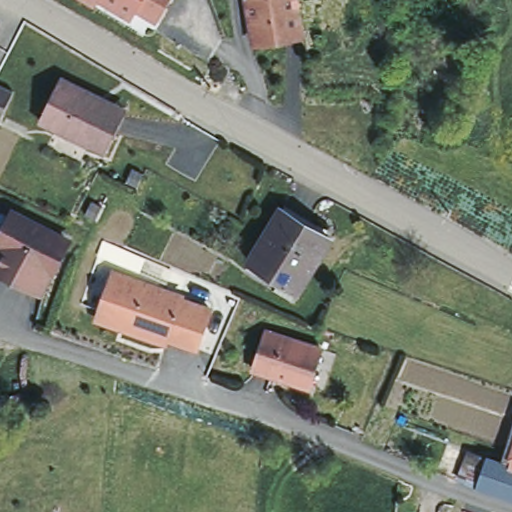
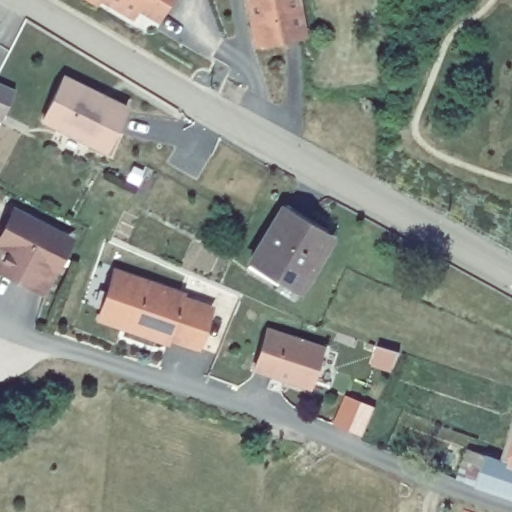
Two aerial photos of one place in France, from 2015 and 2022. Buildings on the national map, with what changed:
unchanged [(98,0),(97,2),(94,0),(98,0)]
unchanged [(138,7),(133,17),(106,0),(169,0),(158,19),(138,7)]
unchanged [(282,34),(283,39),(261,42),(257,21),(255,21),(252,0),(301,0),(305,30),(282,34)]
unchanged [(86,82),(116,97),(115,102),(96,140),(33,110),(53,67),(86,82)]
unchanged [(0,96),(0,80),(6,83),(0,96)]
unchanged [(277,197),(326,227),(315,244),(263,220),(277,197)]
unchanged [(14,201),(63,227),(36,279),(0,260),(0,228),(2,224),(14,201)]
unchanged [(270,277),(276,268),(245,250),(263,220),(315,244),(293,279),(287,288),(270,277)]
unchanged [(183,295),(182,297),(212,307),(198,347),(169,337),(167,341),(133,329),(135,325),(122,320),(120,325),(100,318),(107,296),(116,271),(120,272),(183,295)]
unchanged [(249,357),(261,318),(288,327),(308,333),(318,337),(311,356),(308,366),(305,376),(249,357)]
unchanged [(489,482),(472,476),(482,445),(500,451),(502,443),(512,412),(512,489),(489,482)]

